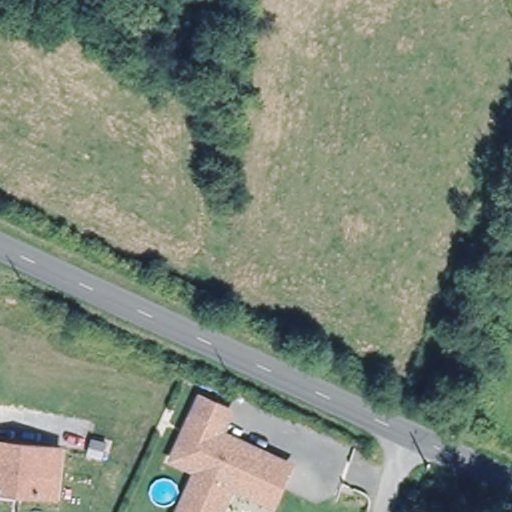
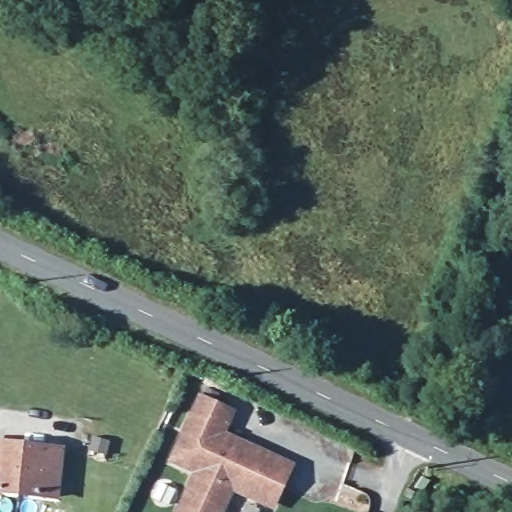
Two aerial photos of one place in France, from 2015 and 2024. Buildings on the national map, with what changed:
unchanged [(202,473),(177,461),(207,400),(236,414),(225,437),(292,470),(273,508),(235,489),(224,512),(183,512),(185,506),(202,473)]
unchanged [(0,492),(0,446),(59,446),(59,492),(0,492)]

